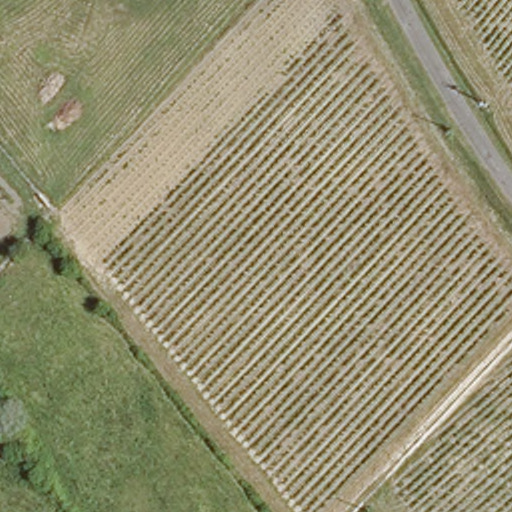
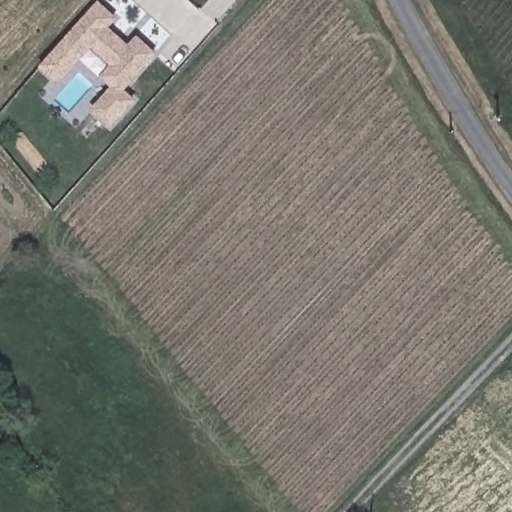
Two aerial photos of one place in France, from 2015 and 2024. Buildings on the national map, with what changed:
new [(98,0),(117,18),(109,27),(128,44),(137,35),(156,54),(125,90),(135,99),(109,128),(89,110),(110,86),(100,76),(109,66),(90,47),(57,82),(39,66),(98,0)]

